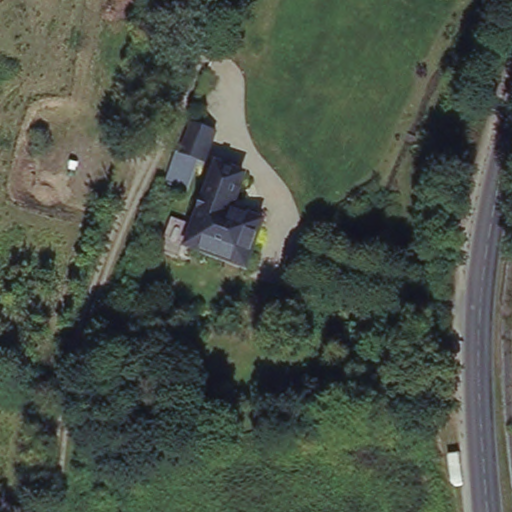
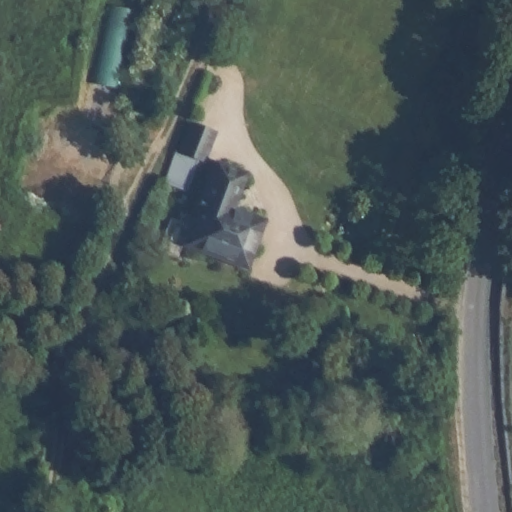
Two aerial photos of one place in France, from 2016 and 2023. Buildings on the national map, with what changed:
unchanged [(199,160),(189,192),(166,184),(177,152),(199,160)]
unchanged [(223,257),(190,245),(219,167),(243,177),(230,210),(261,222),(252,247),(245,265),(223,257)]

